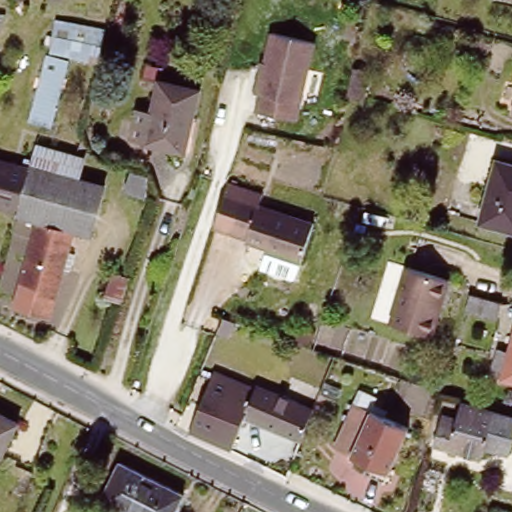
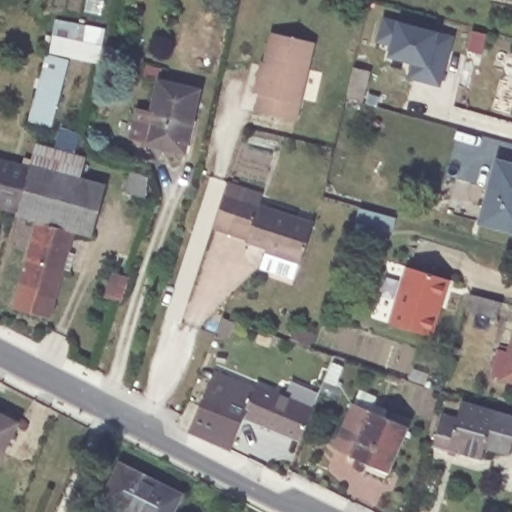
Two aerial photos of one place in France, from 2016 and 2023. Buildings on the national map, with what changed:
unchanged [(49,30),(71,36),(77,16),(113,25),(103,64),(68,55),(51,122),(26,117),(49,30)]
new [(441,87),(408,77),(414,65),(388,57),(391,45),(376,42),(383,16),(397,20),(439,32),(455,36),(441,87)]
unchanged [(294,122),(254,112),(258,97),(253,95),(259,72),(264,74),(274,32),(314,43),(294,122)]
unchanged [(145,65),(161,69),(158,81),(143,77),(145,65)]
unchanged [(369,71),(361,101),(346,96),(353,67),(369,71)]
unchanged [(183,152),(129,138),(136,108),(151,112),(158,81),(197,90),(183,152)]
unchanged [(38,162),(38,159),(44,139),(83,149),(78,170),(80,171),(112,179),(98,230),(82,225),(75,245),(83,247),(78,263),(71,262),(56,312),(21,301),(46,214),(26,207),(26,205),(38,162)]
unchanged [(26,205),(0,197),(0,152),(38,162),(26,205)]
unchanged [(494,159),(512,163),(512,231),(478,222),(494,159)]
unchanged [(147,176),(143,197),(123,190),(129,170),(147,176)]
unchanged [(261,192),(258,205),(286,214),(311,222),(298,261),(273,254),(273,250),(245,240),(244,237),(211,226),(226,181),(261,192)]
unchanged [(446,279),(445,283),(429,335),(388,322),(406,266),(446,279)]
unchanged [(119,299),(104,293),(113,271),(128,277),(119,299)]
unchanged [(496,316),(464,306),(469,291),(500,299),(496,316)]
unchanged [(503,370),(492,367),(498,347),(508,351),(512,336),(512,381),(501,377),(503,370)]
unchanged [(303,441),(247,417),(233,448),(191,432),(193,427),(223,357),(246,365),(241,378),(259,387),(261,383),(316,407),(303,441)]
unchanged [(483,445),(479,457),(432,442),(439,413),(454,417),(459,401),(512,416),(512,439),(509,452),(483,445)]
unchanged [(0,450),(0,409),(17,418),(0,450)]
unchanged [(384,477),(363,467),(364,463),(349,455),(368,410),(408,426),(384,477)]
unchanged [(181,495),(172,512),(123,512),(100,501),(118,464),(181,495)]

